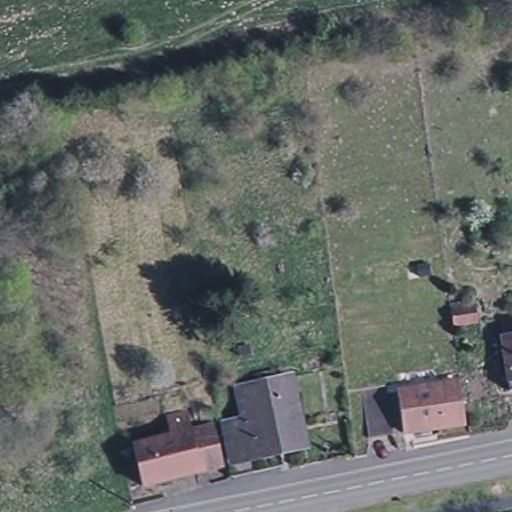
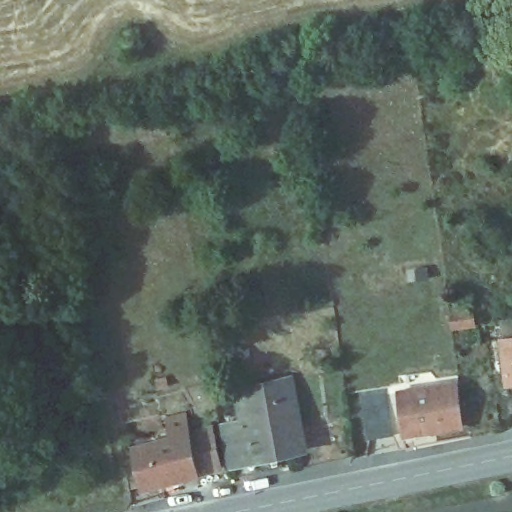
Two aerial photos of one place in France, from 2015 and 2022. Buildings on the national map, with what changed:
unchanged [(475,307),(477,323),(457,325),(454,309),(475,307)]
unchanged [(509,399),(498,343),(512,340),(512,398),(509,399)]
unchanged [(230,474),(227,461),(232,459),(222,421),(240,415),(234,389),(285,375),(301,435),(273,443),(275,449),(253,454),(257,468),(230,474)]
unchanged [(455,382),(462,423),(402,433),(396,390),(455,382)]
unchanged [(385,384),(392,434),(367,438),(360,389),(385,384)]
unchanged [(172,433),(167,416),(188,410),(192,428),(209,423),(222,464),(200,469),(182,474),(143,483),(133,444),(172,433)]

